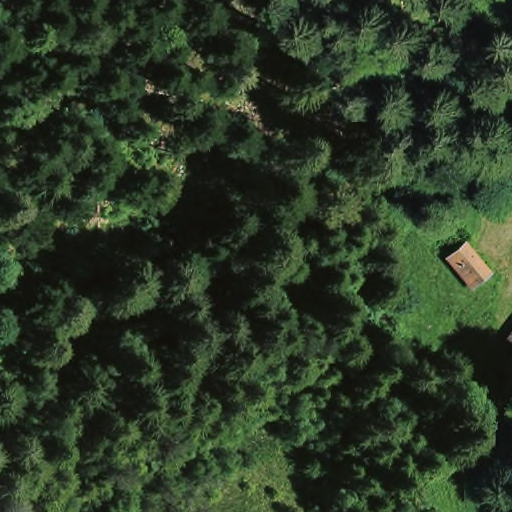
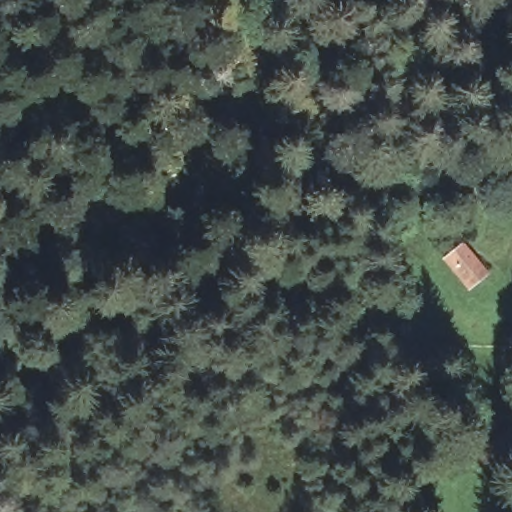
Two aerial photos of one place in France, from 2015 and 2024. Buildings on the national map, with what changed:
unchanged [(455,244),(484,268),(469,285),(441,260),(455,244)]
unchanged [(512,350),(512,353),(511,351),(512,350)]

